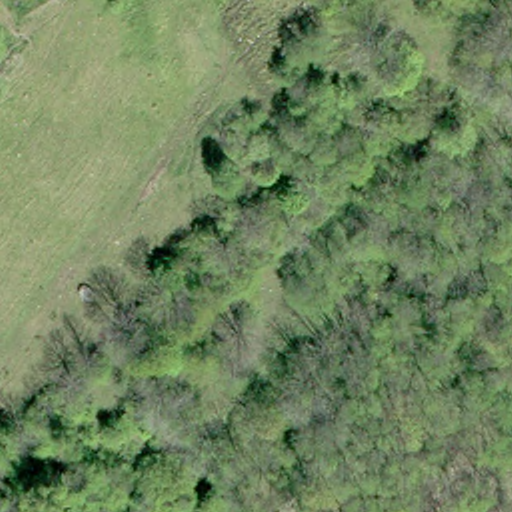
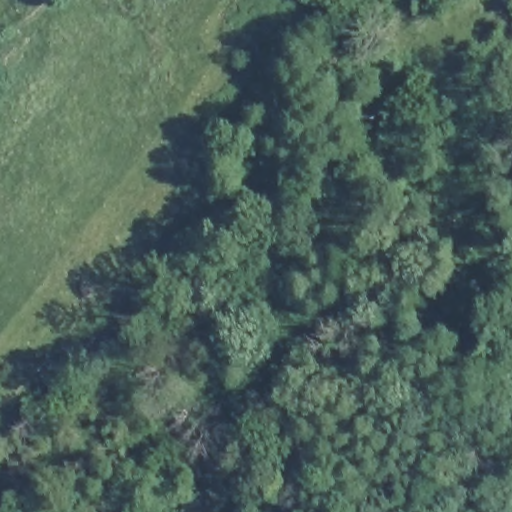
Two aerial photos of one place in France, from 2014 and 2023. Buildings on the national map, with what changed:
[]

